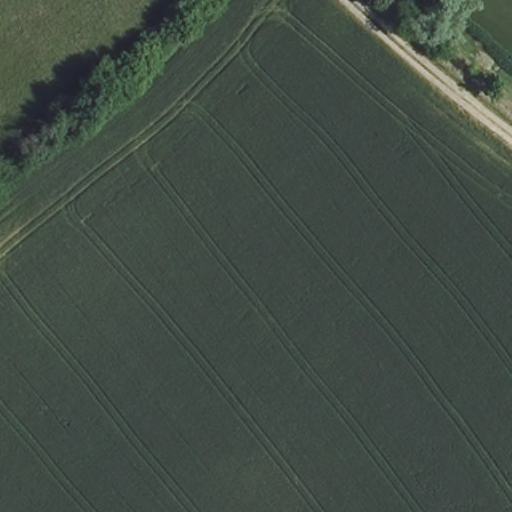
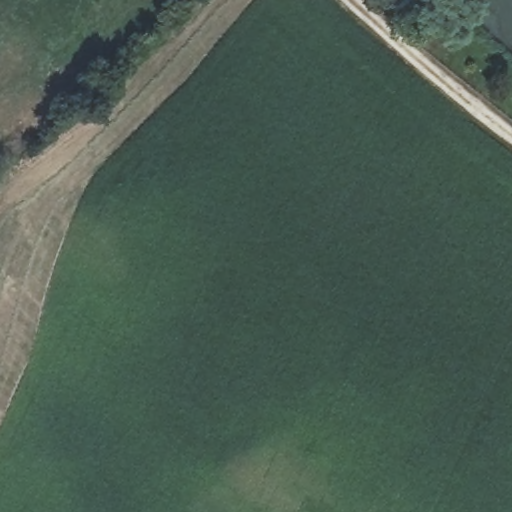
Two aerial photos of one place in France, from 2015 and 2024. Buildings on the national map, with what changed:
[]

